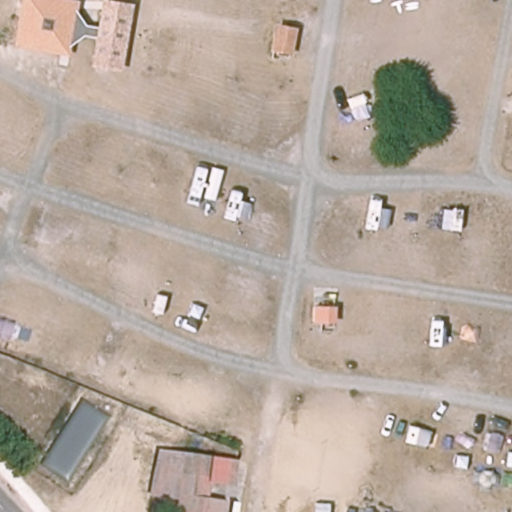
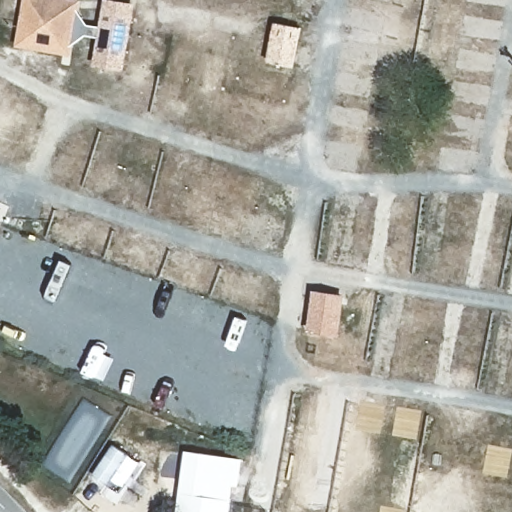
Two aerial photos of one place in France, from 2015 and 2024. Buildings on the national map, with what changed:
unchanged [(72,44),(69,57),(14,49),(23,0),(68,0),(79,2),(77,12),(72,44)]
unchanged [(77,12),(86,22),(98,25),(102,0),(132,4),(121,69),(93,65),(96,37),(87,35),(72,44),(77,12)]
unchanged [(299,47),(275,45),(276,29),(300,30),(299,47)]
new [(314,295),(342,296),(341,333),(314,332),(314,295)]
demolished [(337,327),(317,323),(319,306),(339,307),(337,327)]
unchanged [(192,456),(184,501),(153,496),(160,451),(192,456)]
unchanged [(184,501),(192,456),(244,465),(240,487),(217,486),(215,500),(230,504),(229,512),(183,512),(184,501)]

